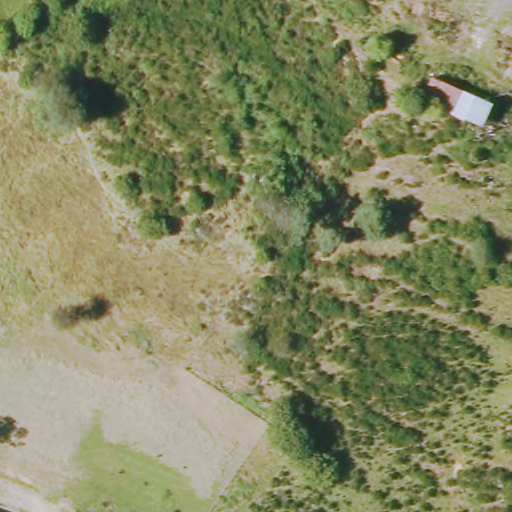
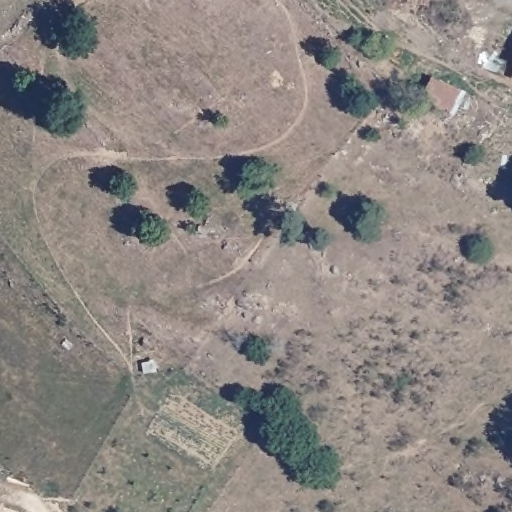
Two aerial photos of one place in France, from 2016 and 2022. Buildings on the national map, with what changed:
unchanged [(434,75),(500,99),(487,126),(425,100),(434,75)]

